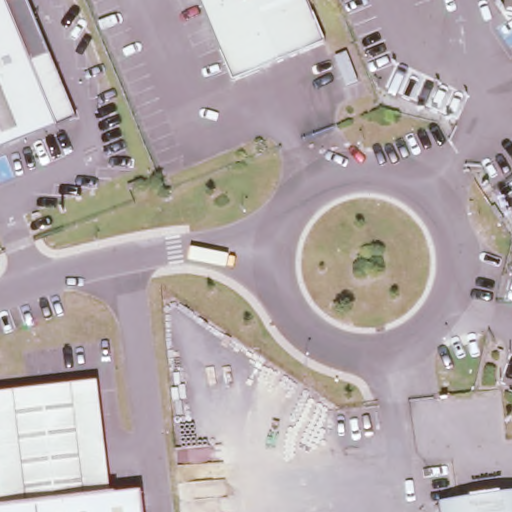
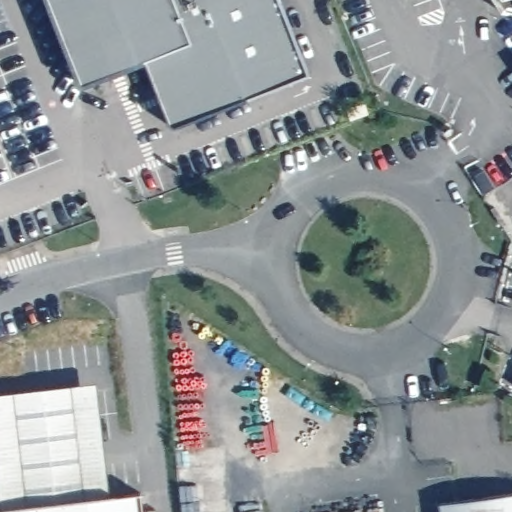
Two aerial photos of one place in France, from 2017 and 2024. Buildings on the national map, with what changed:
demolished [(6,0),(7,0),(26,0),(74,119),(0,147),(0,0),(6,0)]
new [(308,80),(173,132),(145,65),(82,91),(46,0),(277,0),(308,80)]
demolished [(326,46),(232,82),(200,0),(308,0),(326,46)]
demolished [(140,195),(124,201),(122,195),(137,190),(140,195)]
unchanged [(93,379),(108,491),(0,505),(0,393),(93,379)]
unchanged [(141,488),(144,512),(0,512),(0,505),(108,491),(141,488)]
unchanged [(512,493),(512,512),(441,512),(440,503),(512,493)]

